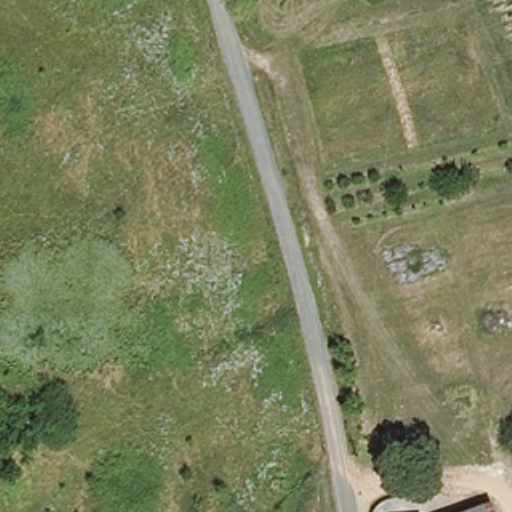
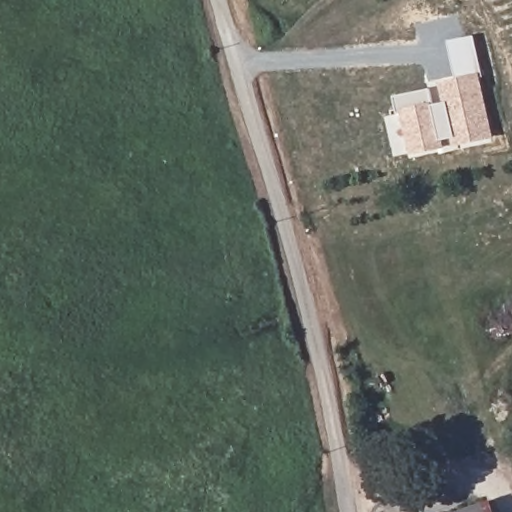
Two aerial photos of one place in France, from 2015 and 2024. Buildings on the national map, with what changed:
new [(475,35),(485,78),(480,80),(494,137),(454,146),(452,139),(444,140),(445,147),(412,155),(401,113),(399,114),(395,96),(431,88),(435,104),(444,101),(440,83),(456,78),(448,41),(475,35)]
unchanged [(481,512),(451,512),(477,501),(481,512)]

